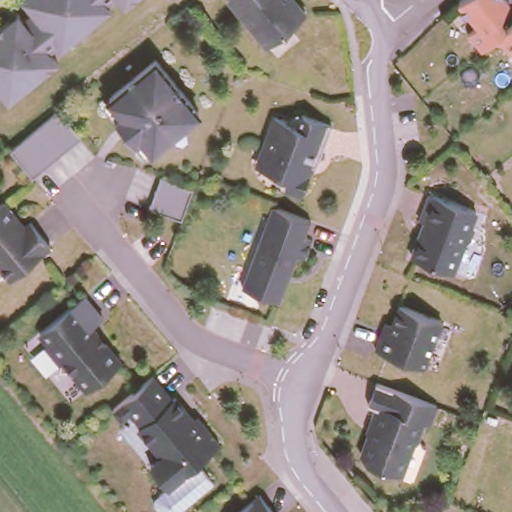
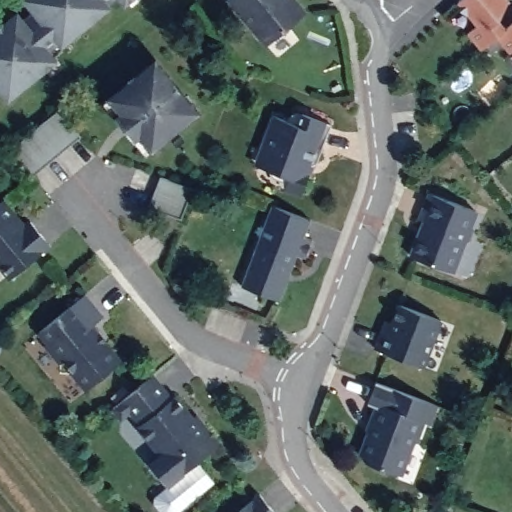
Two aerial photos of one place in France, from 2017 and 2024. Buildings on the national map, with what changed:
unchanged [(33,13),(22,0),(112,0),(107,4),(110,9),(62,48),(58,44),(49,52),(57,62),(8,102),(0,92),(0,27),(8,20),(17,14),(23,21),(33,13)]
unchanged [(119,0),(132,0),(125,6),(119,0)]
unchanged [(292,0),(303,13),(262,47),(221,0),(292,0)]
unchanged [(493,20),(500,29),(512,18),(512,48),(506,54),(492,38),(477,50),(463,34),(473,26),(453,3),(456,0),(502,0),(504,1),(493,20)]
unchanged [(198,116),(143,155),(99,103),(152,62),(198,116)]
unchanged [(76,138),(30,176),(5,149),(54,114),(76,138)]
unchanged [(273,118),(288,123),(292,116),(324,126),(306,168),(312,170),(305,184),(255,164),(273,118)]
unchanged [(159,179),(190,190),(179,219),(146,209),(159,179)]
unchanged [(474,214),(454,273),(407,258),(421,223),(414,222),(422,197),(474,214)]
unchanged [(44,250),(3,278),(0,275),(0,205),(4,202),(44,250)]
unchanged [(309,222),(279,300),(239,288),(269,210),(309,222)]
unchanged [(99,318),(89,327),(119,363),(81,391),(33,336),(82,297),(99,318)]
unchanged [(381,324),(387,327),(395,308),(438,324),(421,372),(398,363),(400,359),(372,350),(381,324)]
unchanged [(176,404),(178,400),(218,446),(164,488),(145,466),(154,461),(109,409),(153,379),(176,404)]
unchanged [(373,409),(367,407),(376,385),(436,407),(430,424),(422,423),(401,476),(355,458),(373,409)]
unchanged [(258,499),(267,512),(240,512),(258,499)]

